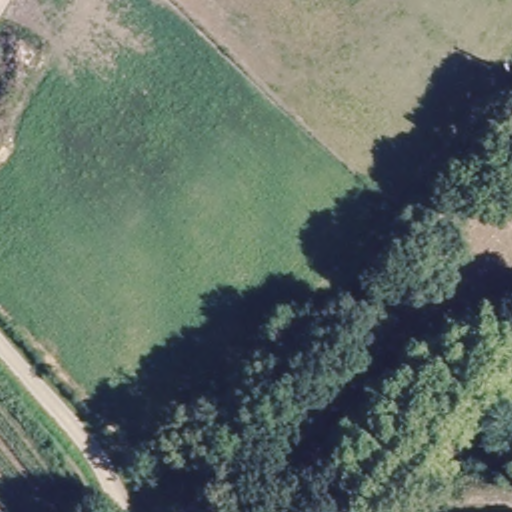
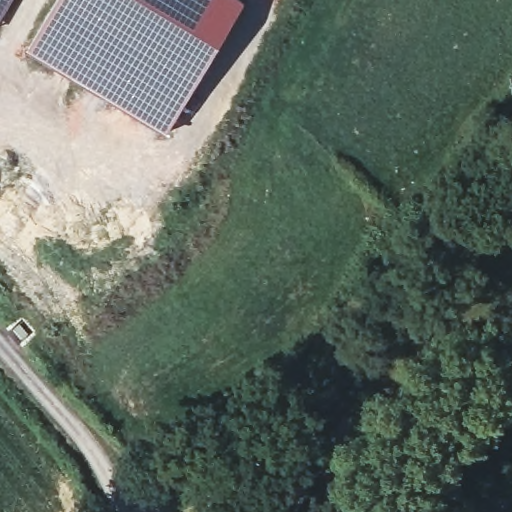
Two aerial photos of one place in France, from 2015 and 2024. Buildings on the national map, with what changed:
unchanged [(0,22),(0,0),(12,0),(0,22)]
new [(55,0),(245,0),(168,133),(26,49),(55,0)]

